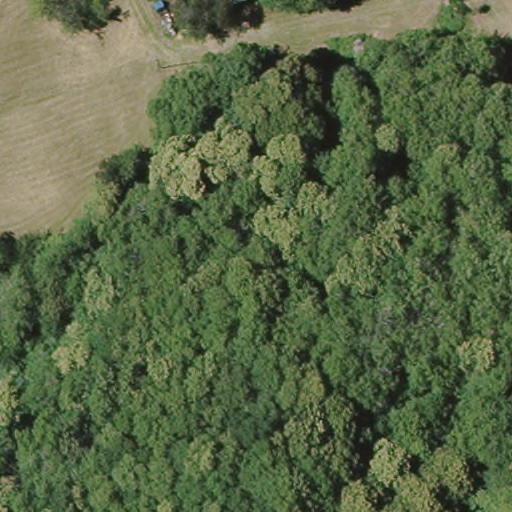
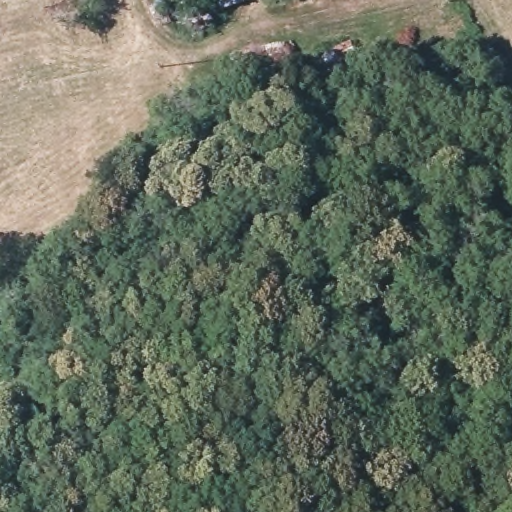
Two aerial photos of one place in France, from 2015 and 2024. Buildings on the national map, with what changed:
unchanged [(257,0),(221,14),(213,0),(257,0)]

